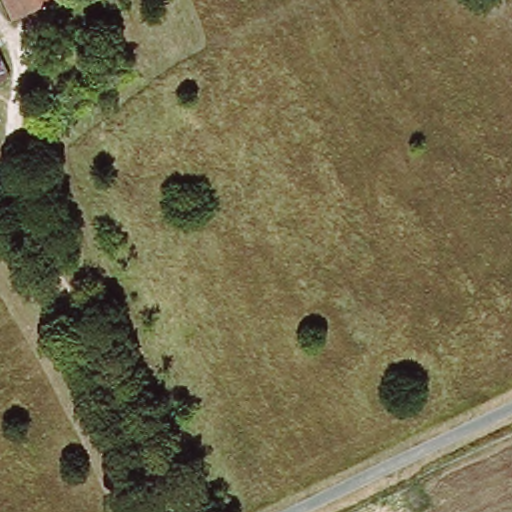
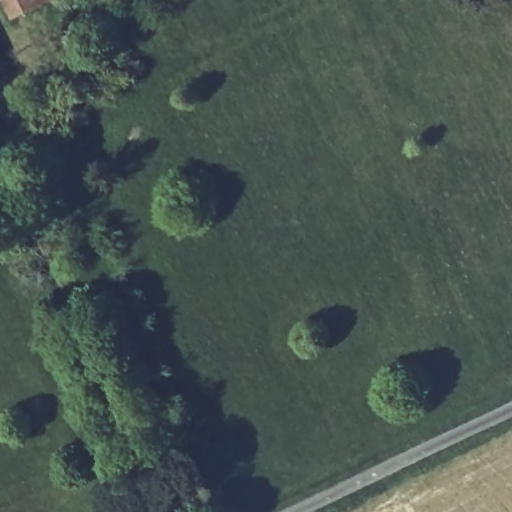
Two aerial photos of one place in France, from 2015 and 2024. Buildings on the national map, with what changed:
unchanged [(11,21),(2,0),(54,0),(11,21)]
unchanged [(0,83),(0,55),(11,77),(0,83)]

